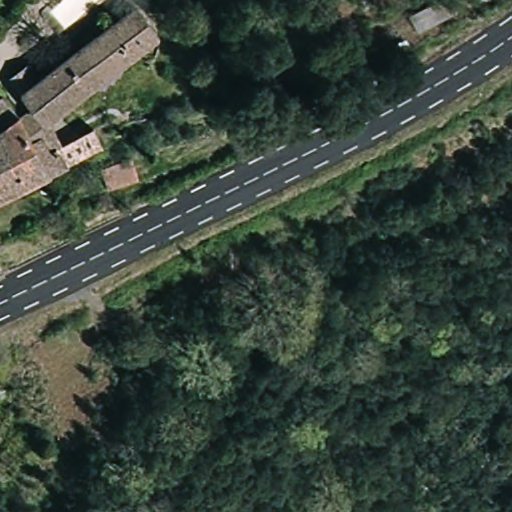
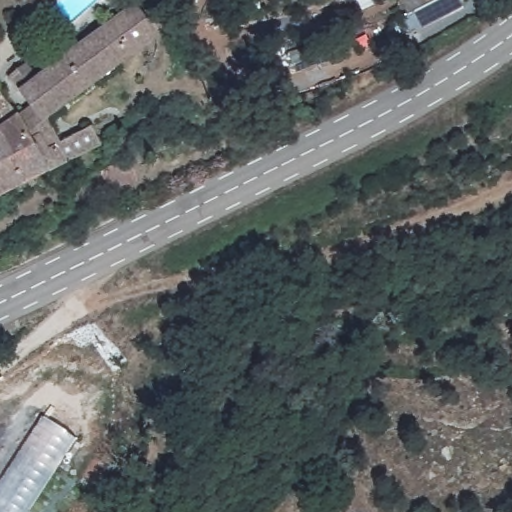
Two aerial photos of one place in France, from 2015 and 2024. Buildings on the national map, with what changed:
unchanged [(410,13),(436,0),(455,0),(460,10),(418,30),(410,13)]
unchanged [(43,116),(32,102),(12,76),(25,65),(36,77),(135,8),(157,36),(57,109),(43,116)]
unchanged [(3,92),(18,113),(32,102),(43,116),(57,109),(57,146),(89,123),(99,137),(65,159),(47,170),(0,197),(0,127),(0,94),(3,92)]
new [(0,512),(0,482),(42,417),(76,439),(29,512),(0,512)]

